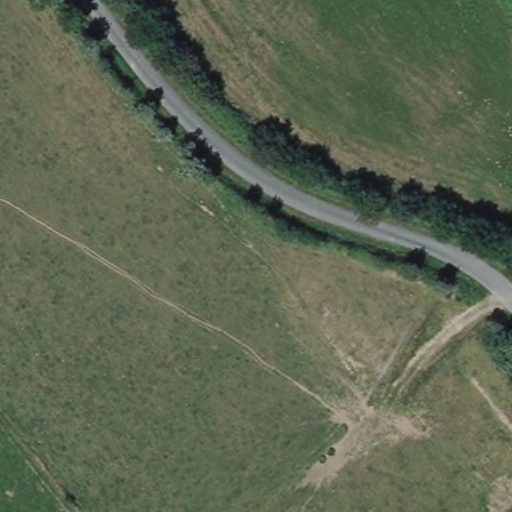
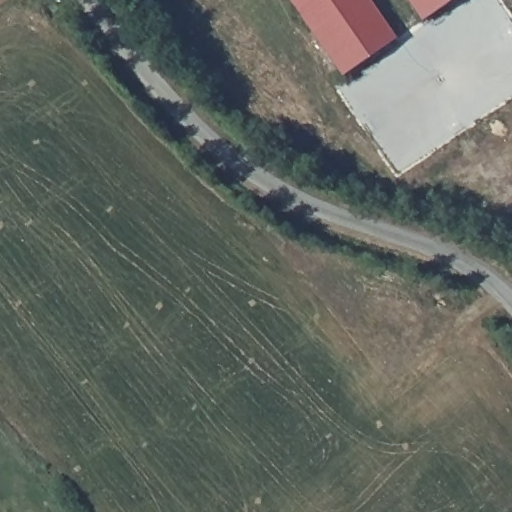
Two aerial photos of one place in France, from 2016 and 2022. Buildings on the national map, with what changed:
new [(396,41),(341,77),(288,0),(369,0),(396,41)]
new [(423,21),(409,0),(454,0),(423,21)]

